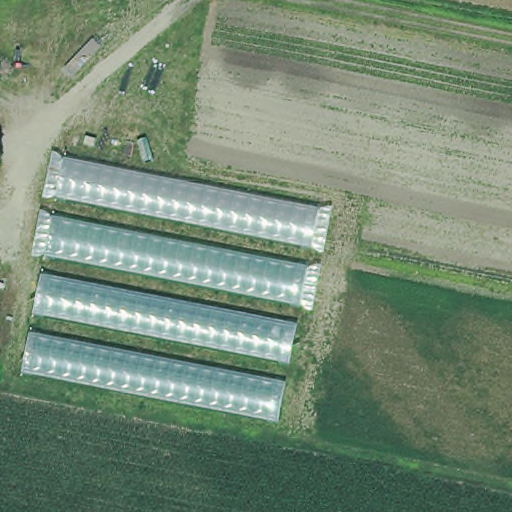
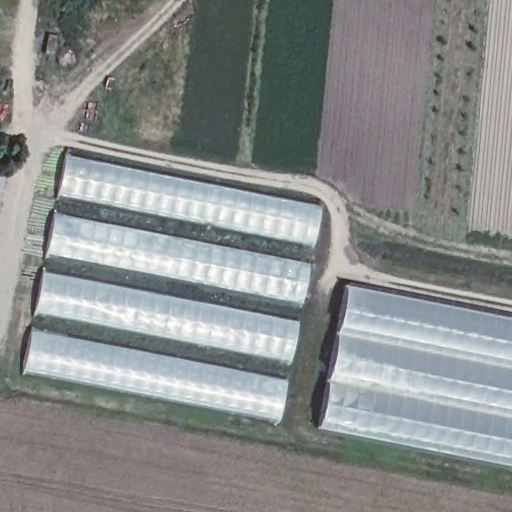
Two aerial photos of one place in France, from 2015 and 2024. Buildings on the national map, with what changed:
unchanged [(67,159),(319,207),(277,420),(22,371),(67,159)]
unchanged [(0,189),(0,173),(3,174),(0,189)]
new [(512,319),(512,468),(316,430),(345,285),(512,319)]

